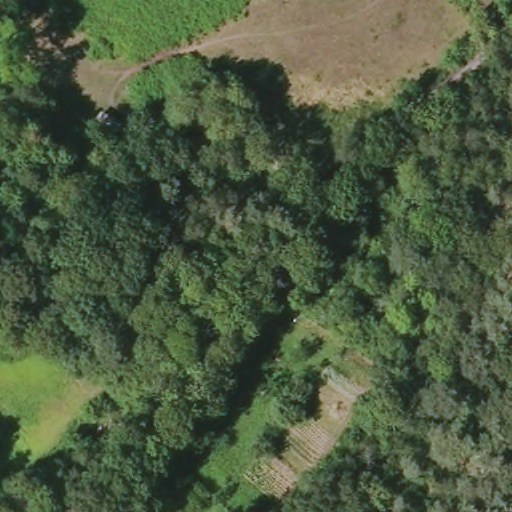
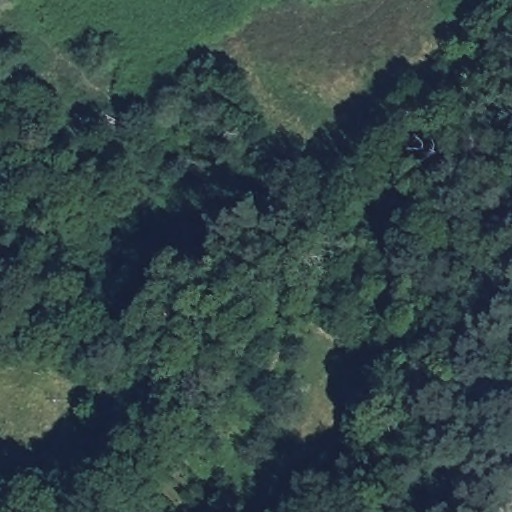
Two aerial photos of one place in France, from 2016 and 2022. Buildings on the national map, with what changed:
unchanged [(123,121),(109,142),(85,128),(102,109),(123,121)]

